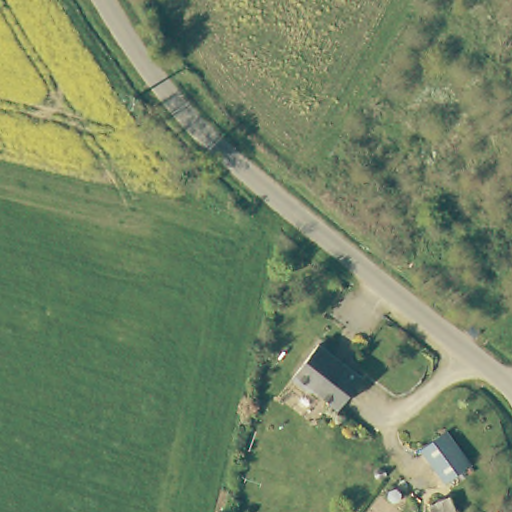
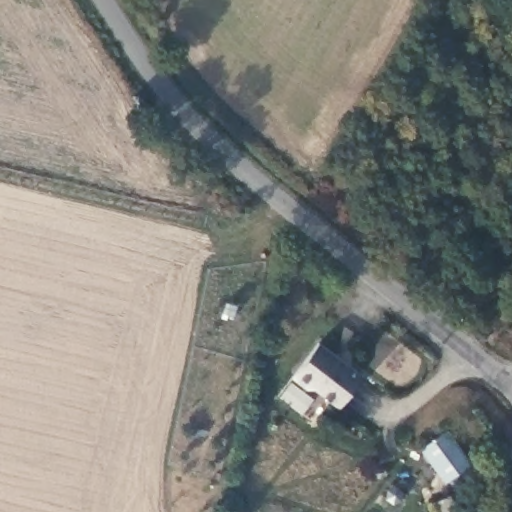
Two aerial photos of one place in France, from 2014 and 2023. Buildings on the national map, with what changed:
unchanged [(312,392),(296,379),(323,344),(367,379),(342,409),(316,388),(312,392)]
unchanged [(427,452),(451,434),(476,467),(451,485),(427,452)]
unchanged [(458,511),(456,512),(427,512),(425,506),(451,495),(458,511)]

